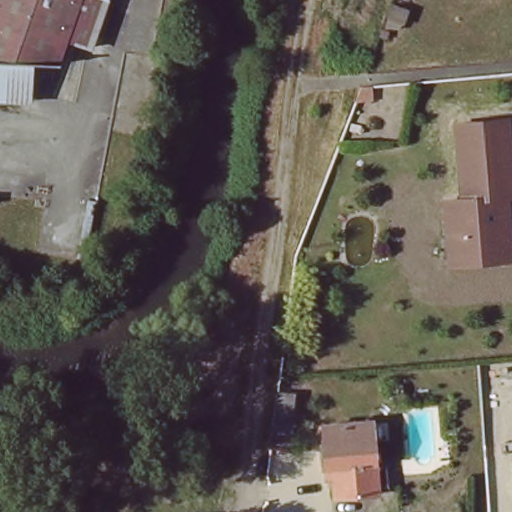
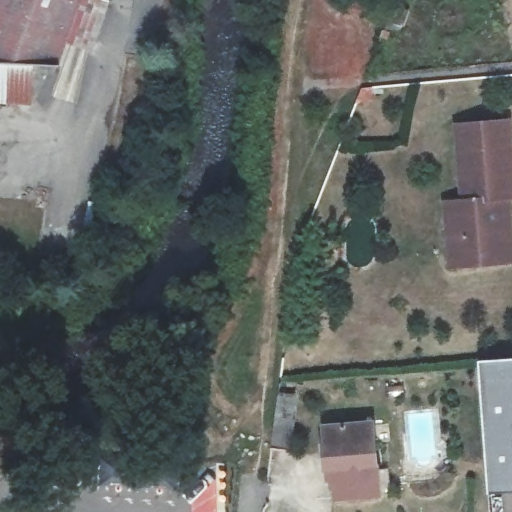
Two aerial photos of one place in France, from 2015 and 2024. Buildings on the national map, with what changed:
unchanged [(29,106),(0,104),(0,0),(64,0),(33,68),(29,106)]
unchanged [(465,251),(463,229),(450,230),(447,202),(460,201),(453,125),(510,120),(512,147),(512,197),(509,197),(512,230),(512,261),(466,266),(465,251)]
new [(488,491),(478,360),(512,358),(512,488),(488,491)]
unchanged [(379,502),(335,507),(334,487),(325,488),(321,438),(326,437),(325,425),(375,419),(379,502)]
unchanged [(297,427),(295,455),(268,452),(271,425),(297,427)]

